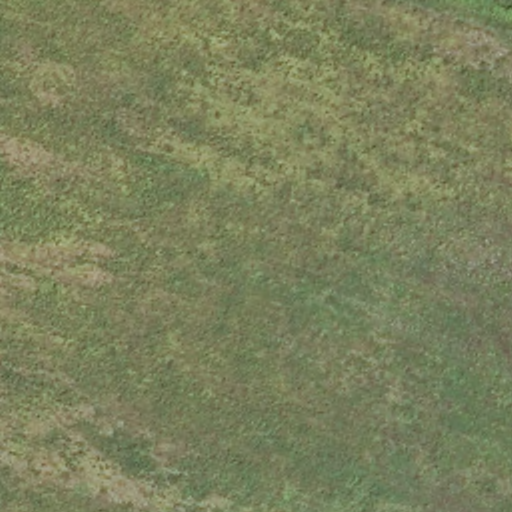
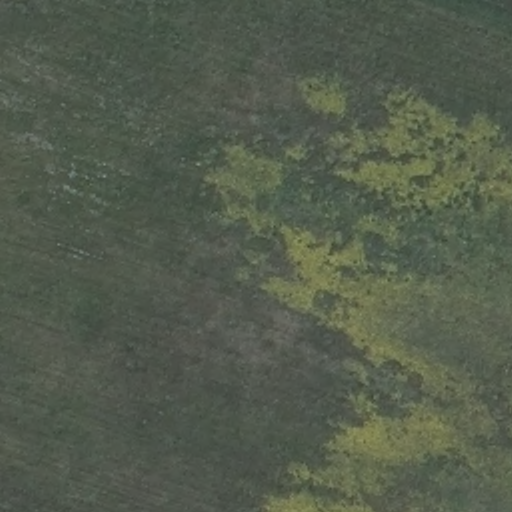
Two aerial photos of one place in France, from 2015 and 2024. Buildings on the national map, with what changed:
[]

